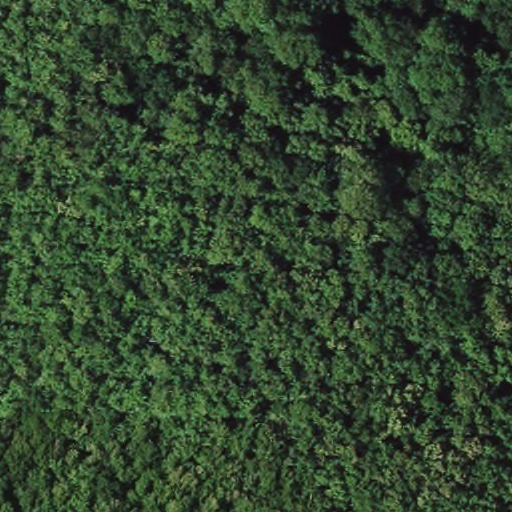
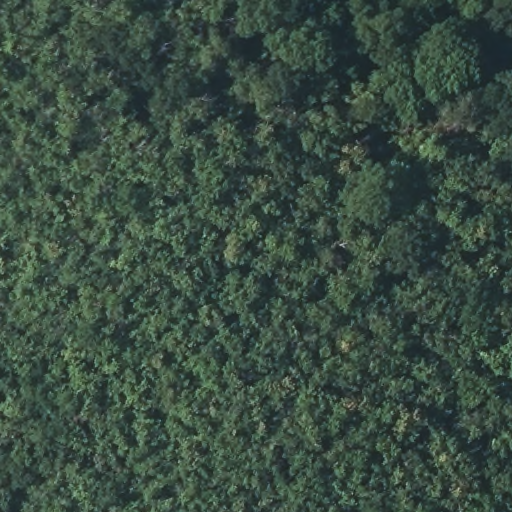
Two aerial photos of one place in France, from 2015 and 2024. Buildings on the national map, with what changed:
unchanged [(425,132),(397,134),(397,112),(426,110),(425,132)]
unchanged [(351,117),(352,140),(300,147),(295,117),(333,117),(351,117)]

